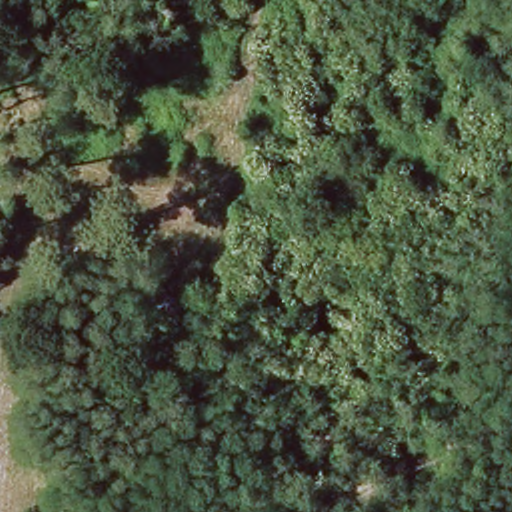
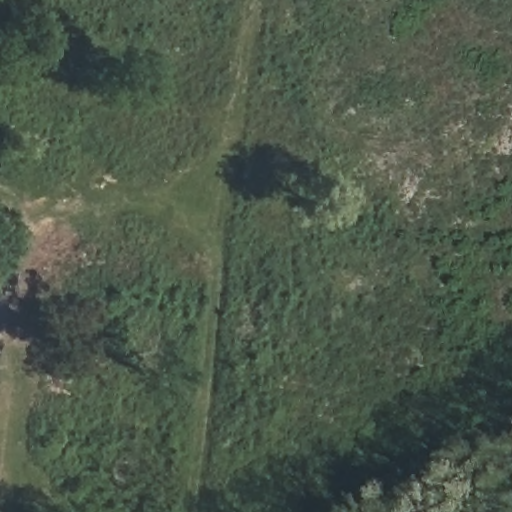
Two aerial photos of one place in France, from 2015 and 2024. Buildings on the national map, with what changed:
[]

